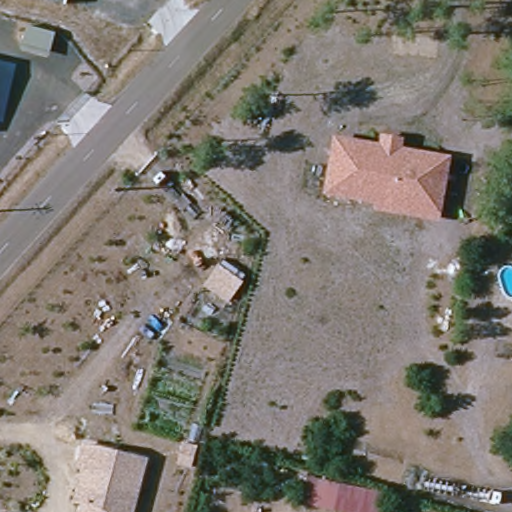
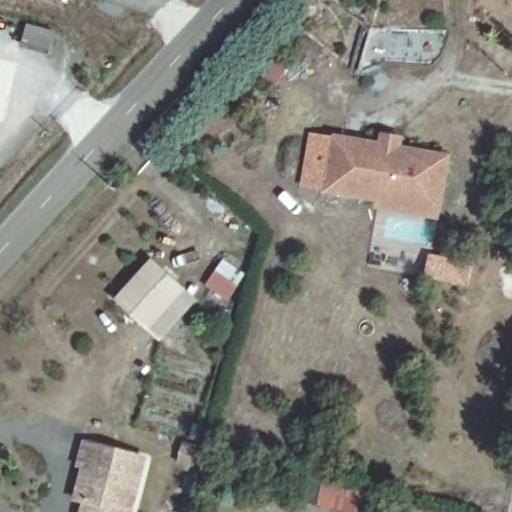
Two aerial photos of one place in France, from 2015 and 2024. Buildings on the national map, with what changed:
unchanged [(67,3),(51,0),(68,0),(67,3)]
unchanged [(25,47),(30,25),(56,31),(50,54),(25,47)]
unchanged [(325,193),(335,137),(380,143),(381,133),(406,137),(405,145),(453,155),(440,222),(374,211),(375,202),(325,193)]
new [(200,300),(162,342),(116,301),(154,259),(200,300)]
unchanged [(242,283),(226,305),(201,286),(218,265),(242,283)]
unchanged [(147,464),(134,512),(85,512),(86,506),(76,503),(85,470),(81,469),(87,447),(147,464)]
unchanged [(188,451),(182,472),(170,468),(175,447),(188,451)]
unchanged [(395,512),(337,512),(301,505),(305,475),(397,495),(395,512)]

